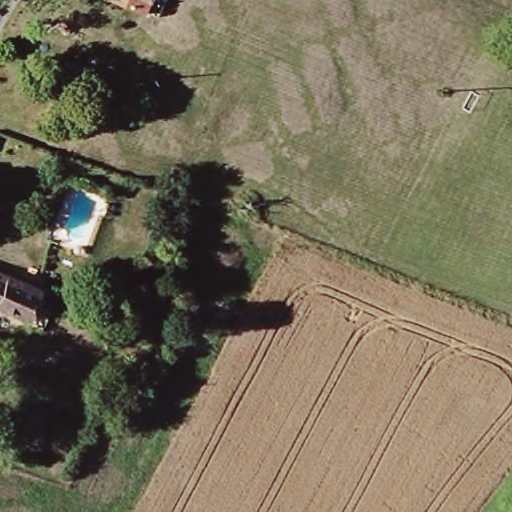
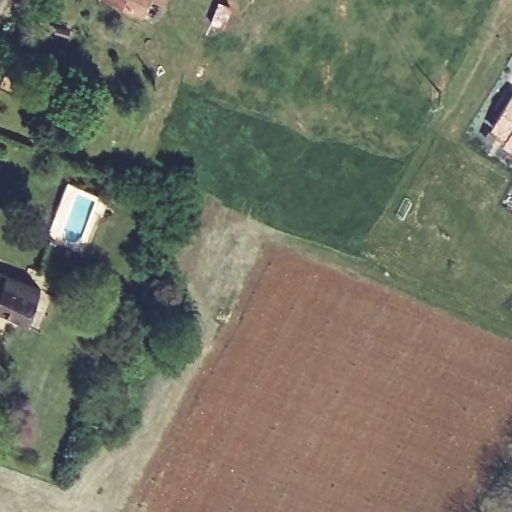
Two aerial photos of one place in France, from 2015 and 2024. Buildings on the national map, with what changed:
unchanged [(123,0),(146,0),(142,9),(123,0)]
new [(507,140),(491,129),(512,94),(512,151),(503,146),(507,140)]
unchanged [(42,290),(29,315),(0,301),(0,270),(42,290)]

